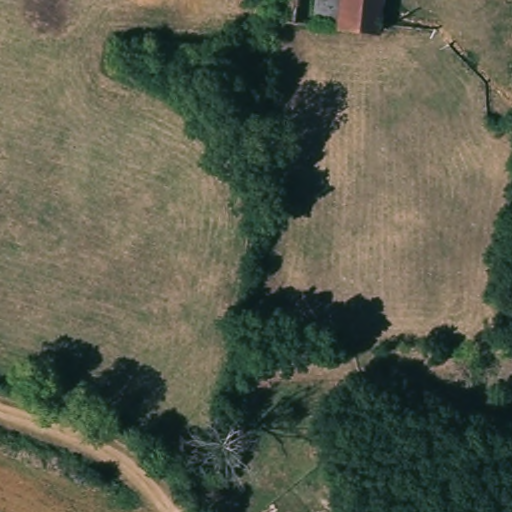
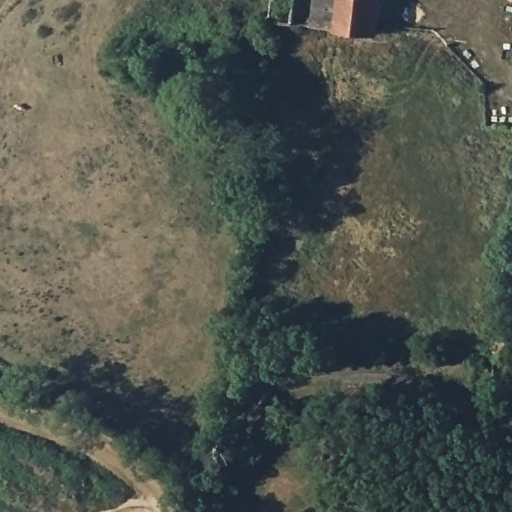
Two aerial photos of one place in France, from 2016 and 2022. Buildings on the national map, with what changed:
unchanged [(294,24),(269,20),(271,0),(297,0),(294,24)]
unchanged [(377,24),(376,32),(320,26),(312,25),(315,0),(380,0),(377,24)]

